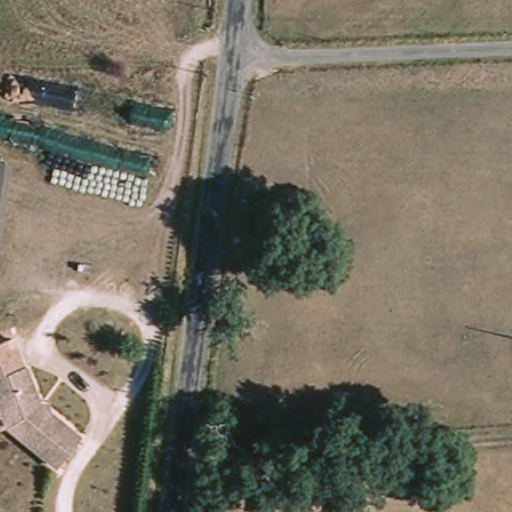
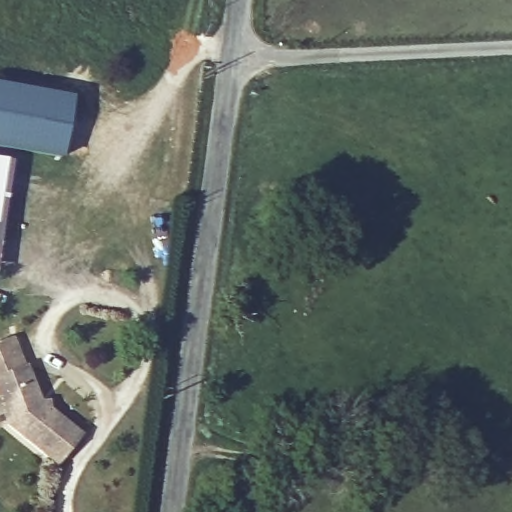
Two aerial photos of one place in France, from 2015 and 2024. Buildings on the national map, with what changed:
new [(69,95),(59,156),(0,146),(0,84),(69,95)]
unchanged [(0,189),(0,160),(4,160),(0,189)]
unchanged [(64,469),(16,433),(0,390),(0,353),(19,345),(29,373),(34,373),(46,409),(85,440),(64,469)]

